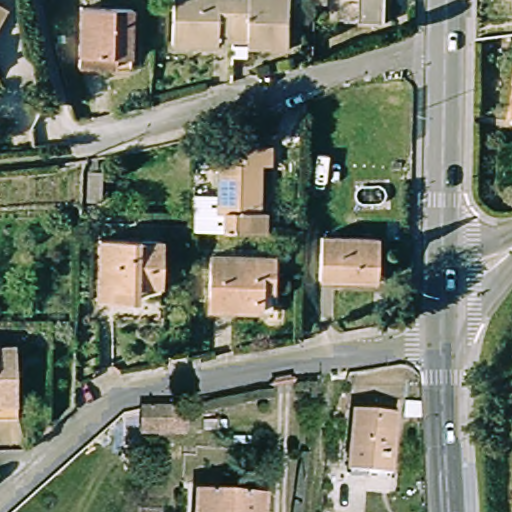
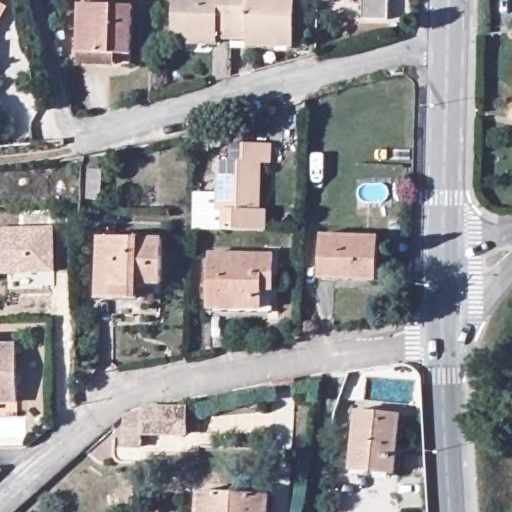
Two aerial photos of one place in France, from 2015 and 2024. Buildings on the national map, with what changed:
unchanged [(1,0),(13,6),(2,31),(0,31),(0,0),(1,0)]
unchanged [(83,50),(84,0),(93,0),(135,3),(133,53),(133,61),(83,59),(83,50)]
unchanged [(176,38),(177,0),(237,0),(236,34),(221,33),(220,39),(195,39),(176,38)]
unchanged [(236,34),(237,0),(298,0),(296,41),(277,40),(251,40),(251,34),(236,34)]
unchanged [(323,1),(323,0),(333,0),(333,1),(323,1)]
unchanged [(371,21),(371,0),(393,0),(393,22),(371,21)]
unchanged [(224,229),(224,210),(216,210),(219,160),(229,160),(231,141),(270,141),(268,161),(260,161),(257,209),(266,210),(265,229),(224,229)]
unchanged [(104,199),(88,199),(89,168),(105,169),(104,199)]
new [(55,227),(57,273),(0,276),(0,228),(55,227)]
unchanged [(374,234),(374,244),(378,244),(377,273),(337,272),(337,276),(320,275),(322,232),(374,234)]
unchanged [(161,236),(160,282),(136,281),(136,285),(116,284),(116,295),(99,295),(101,235),(161,236)]
unchanged [(273,254),(272,309),(209,307),(210,253),(273,254)]
unchanged [(18,344),(19,403),(0,403),(0,344),(18,344)]
unchanged [(144,408),(186,409),(185,435),(143,434),(144,408)]
unchanged [(399,413),(392,473),(370,470),(370,465),(351,463),(357,409),(399,413)]
unchanged [(200,490),(268,494),(267,512),(199,512),(200,490)]

